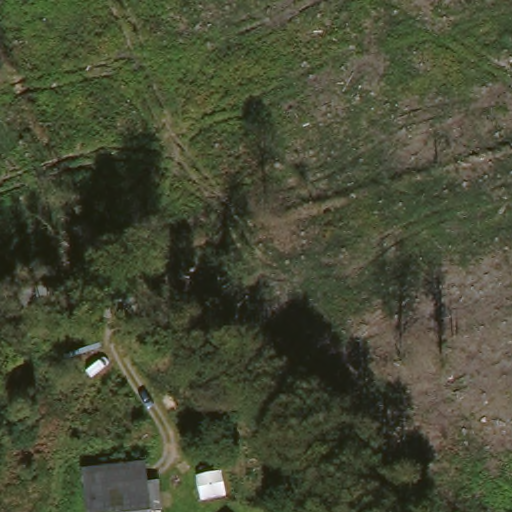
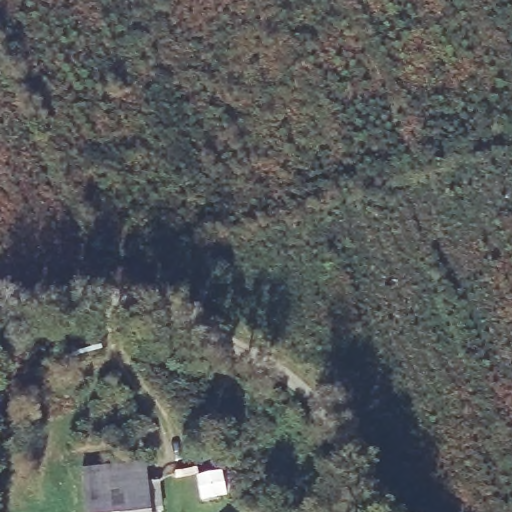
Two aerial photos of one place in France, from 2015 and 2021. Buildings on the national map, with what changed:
unchanged [(148,463),(154,512),(90,512),(84,468),(148,463)]

